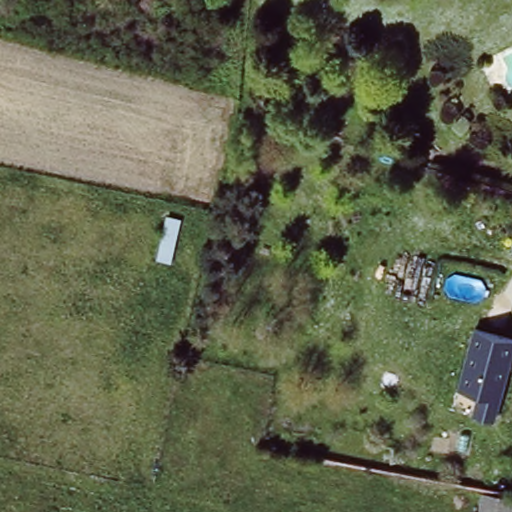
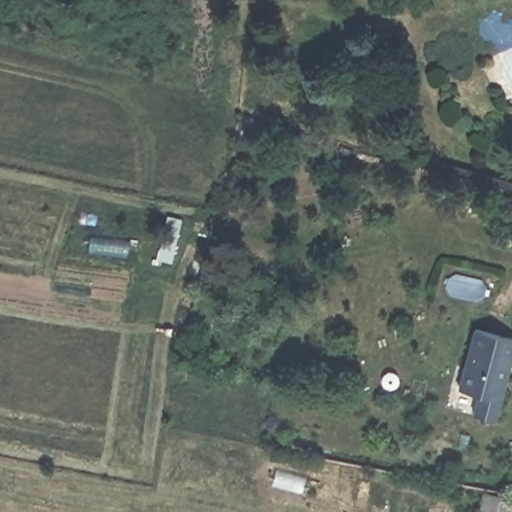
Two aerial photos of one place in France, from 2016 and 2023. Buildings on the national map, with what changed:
unchanged [(190,217),(177,263),(154,258),(166,211),(190,217)]
unchanged [(512,340),(512,354),(494,422),(473,415),(478,395),(459,390),(475,330),(512,340)]
unchanged [(512,493),(512,512),(477,512),(482,488),(512,493)]

